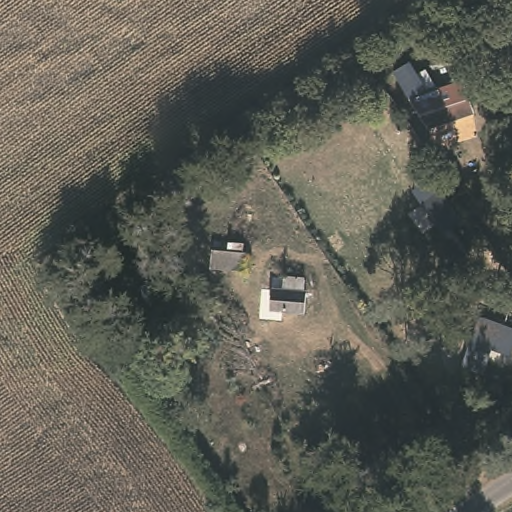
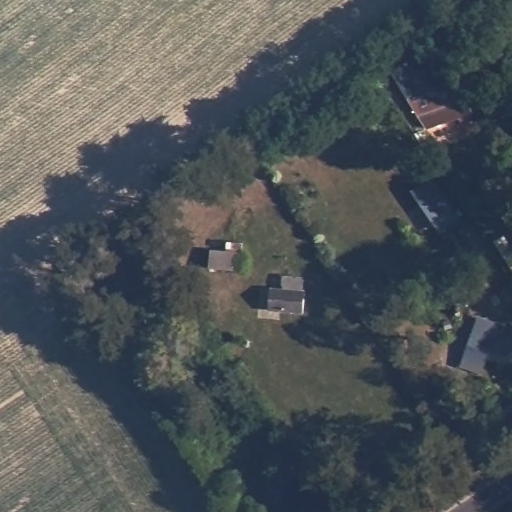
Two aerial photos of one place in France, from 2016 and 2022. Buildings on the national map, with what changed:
unchanged [(497,10),(503,21),(487,31),(480,19),(497,10)]
unchanged [(402,63),(418,88),(405,97),(387,72),(402,63)]
unchanged [(431,107),(427,90),(456,82),(461,100),(431,107)]
unchanged [(239,242),(238,251),(242,252),(241,271),(206,268),(207,249),(224,250),(224,241),(239,242)]
unchanged [(304,286),(303,297),(307,298),(304,317),(269,314),(272,294),(283,295),(285,284),(304,286)]

